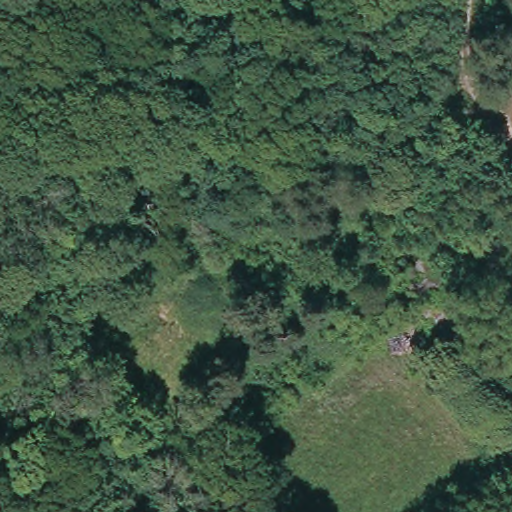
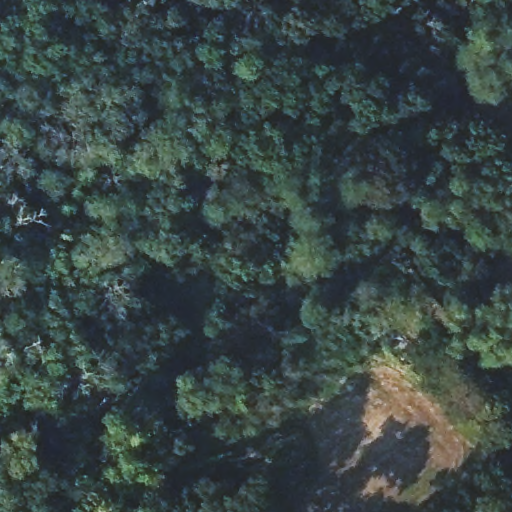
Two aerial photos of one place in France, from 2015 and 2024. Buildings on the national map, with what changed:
unchanged [(422,244),(467,308),(442,334),(390,270),(422,244)]

